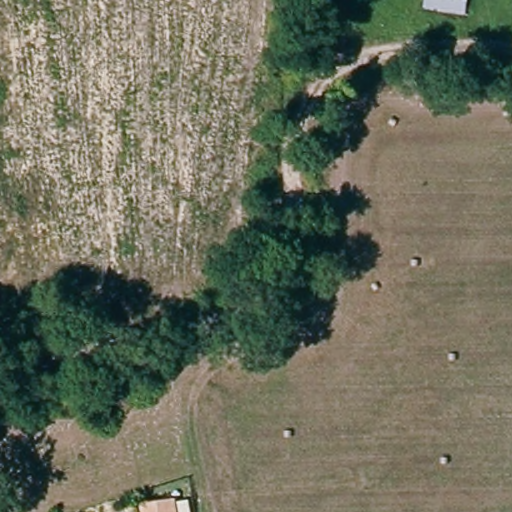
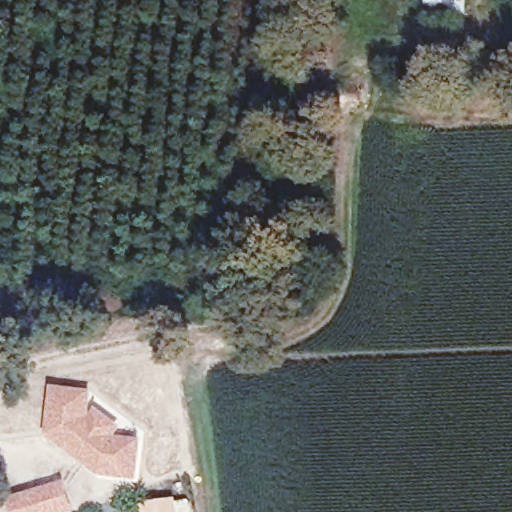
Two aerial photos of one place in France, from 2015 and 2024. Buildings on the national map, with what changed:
unchanged [(467,18),(423,11),(425,0),(470,0),(467,18)]
new [(91,414),(97,408),(122,428),(116,436),(142,439),(137,480),(99,476),(45,434),(54,386),(92,391),(91,414)]
new [(65,481),(75,512),(13,512),(12,498),(65,481)]
unchanged [(180,505),(180,512),(150,512),(150,509),(180,505)]

